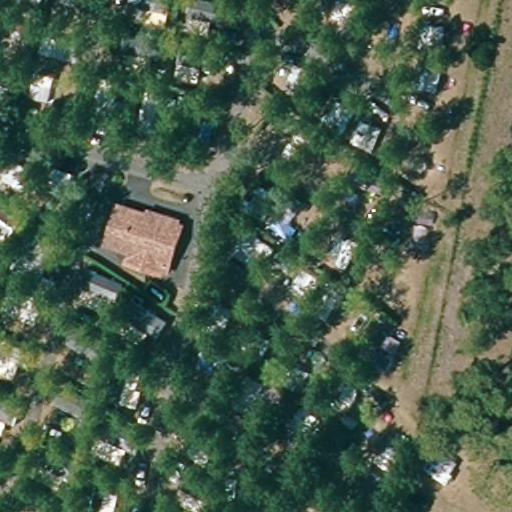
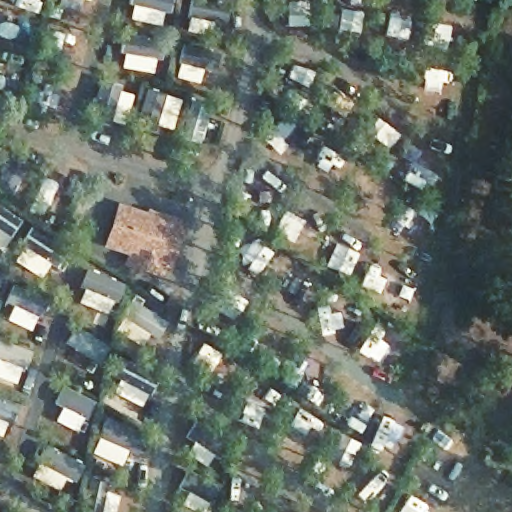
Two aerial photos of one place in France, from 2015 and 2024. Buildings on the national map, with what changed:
unchanged [(117,209),(144,217),(145,213),(175,222),(175,224),(179,225),(167,273),(129,263),(131,256),(105,248),(117,209)]

